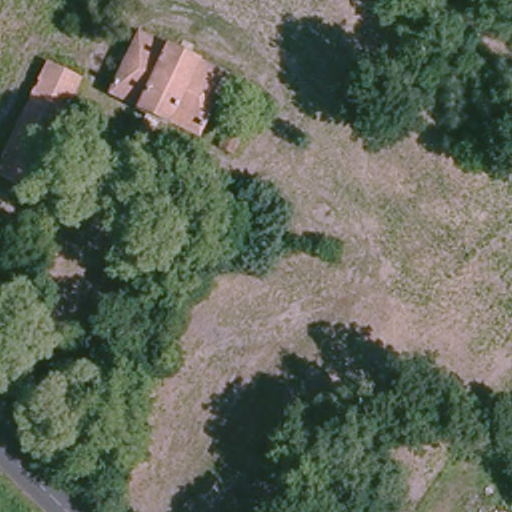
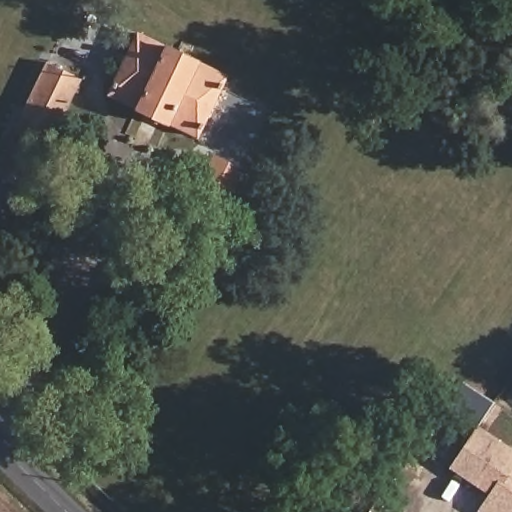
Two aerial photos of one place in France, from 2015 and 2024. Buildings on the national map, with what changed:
unchanged [(231,73),(200,135),(110,92),(140,30),(231,73)]
unchanged [(32,193),(28,190),(17,209),(0,200),(0,172),(48,62),(86,80),(32,193)]
unchanged [(229,154),(219,150),(223,139),(234,144),(231,152),(229,154)]
new [(488,494),(449,467),(476,427),(512,450),(512,512),(477,512),(477,511),(488,494)]

